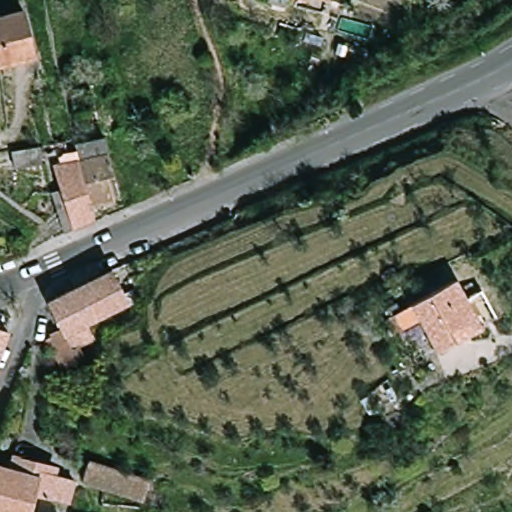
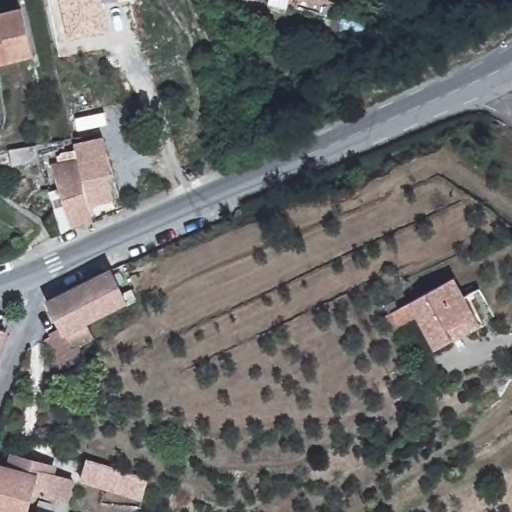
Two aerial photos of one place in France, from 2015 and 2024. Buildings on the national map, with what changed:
new [(109,32),(68,41),(60,0),(118,0),(103,3),(109,32)]
unchanged [(291,0),(294,0),(294,1),(291,0)]
unchanged [(311,0),(330,0),(329,5),(311,0)]
unchanged [(38,53),(0,64),(0,15),(23,8),(38,53)]
unchanged [(103,138),(118,196),(88,205),(77,158),(74,145),(78,142),(103,138)]
unchanged [(40,142),(44,159),(15,165),(11,149),(40,142)]
unchanged [(77,158),(88,205),(91,216),(71,227),(53,164),(77,158)]
unchanged [(97,339),(83,346),(60,357),(53,340),(51,337),(53,336),(66,330),(53,302),(78,290),(89,285),(118,271),(133,302),(104,316),(98,319),(93,321),(89,323),(97,339)]
unchanged [(390,313),(457,276),(486,323),(438,350),(419,318),(397,328),(390,313)]
unchanged [(0,352),(0,319),(11,324),(0,352)]
unchanged [(0,461),(13,465),(17,454),(58,467),(56,473),(75,479),(70,498),(51,492),(50,495),(37,491),(35,498),(31,512),(0,512),(0,461)]
unchanged [(148,476),(141,496),(81,477),(88,457),(148,476)]

